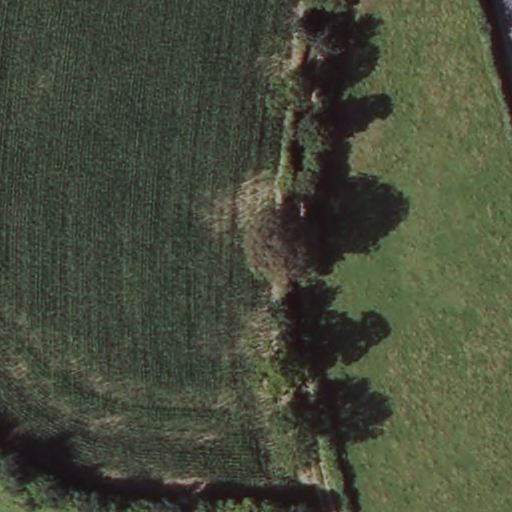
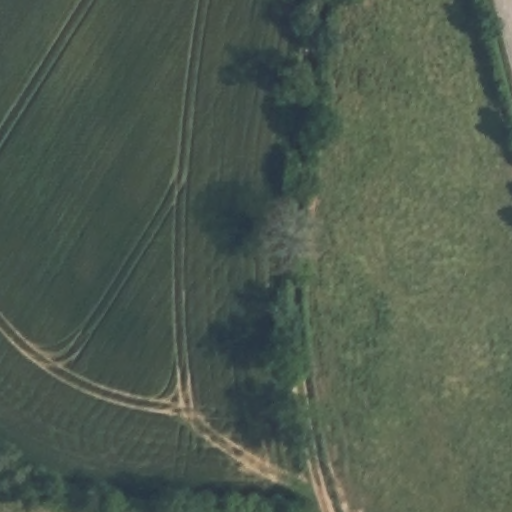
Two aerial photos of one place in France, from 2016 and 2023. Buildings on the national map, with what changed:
[]

